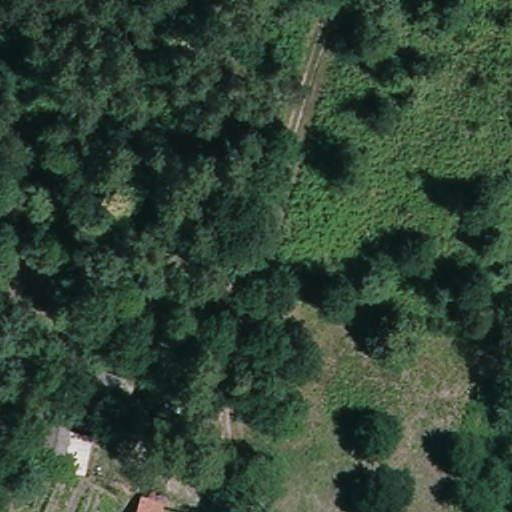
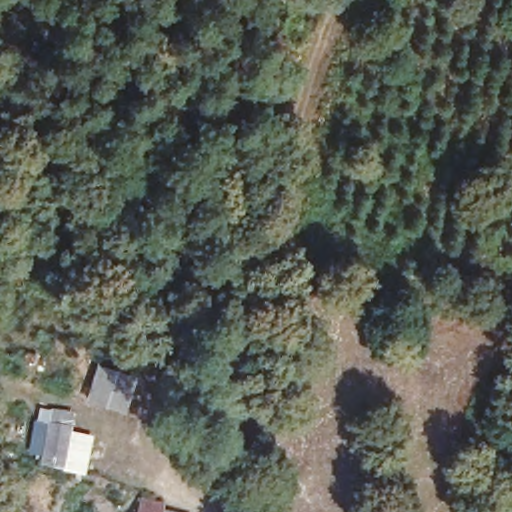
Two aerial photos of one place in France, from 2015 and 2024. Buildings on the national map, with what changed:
new [(97,364),(139,377),(126,415),(85,402),(97,364)]
unchanged [(52,426),(85,440),(71,472),(39,458),(52,426)]
unchanged [(171,496),(165,512),(128,512),(138,485),(171,496)]

